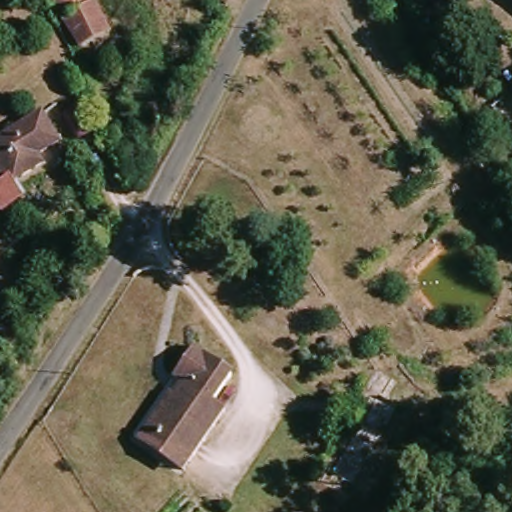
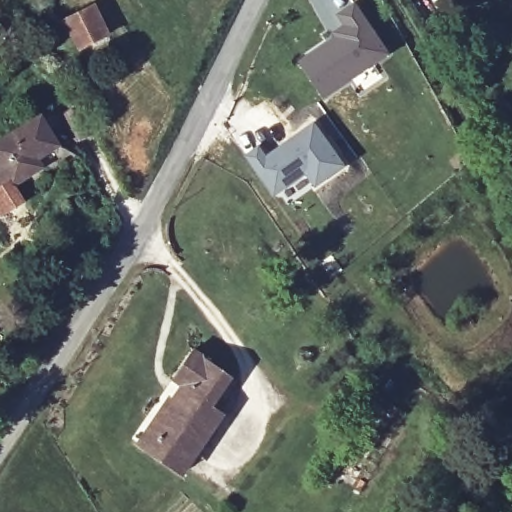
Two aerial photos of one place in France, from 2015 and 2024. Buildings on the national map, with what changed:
new [(328,31),(338,24),(332,15),(352,0),(353,0),(390,53),(323,99),(296,61),(330,34),(328,31)]
unchanged [(84,50),(66,19),(98,4),(117,34),(84,50)]
unchanged [(48,153),(51,159),(17,179),(15,176),(5,182),(0,186),(0,139),(47,112),(65,143),(48,153)]
new [(305,173),(273,195),(243,154),(256,145),(265,156),(313,122),(344,165),(315,187),(305,173)]
unchanged [(3,332),(0,335),(0,329),(3,332)]
unchanged [(184,448),(154,427),(179,391),(182,393),(189,383),(177,375),(198,345),(236,372),(216,401),(184,448)]
unchanged [(188,469),(145,440),(154,427),(184,448),(216,401),(228,409),(188,469)]

